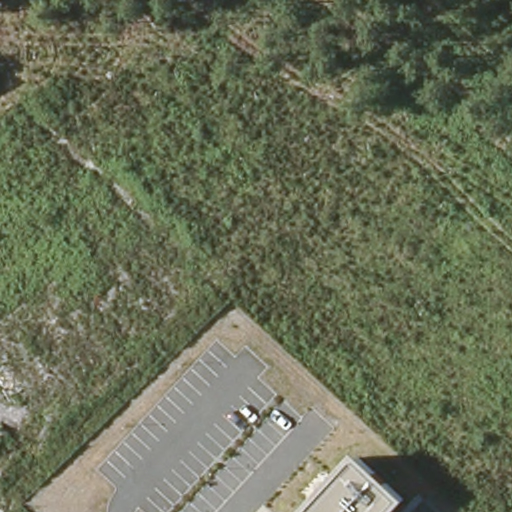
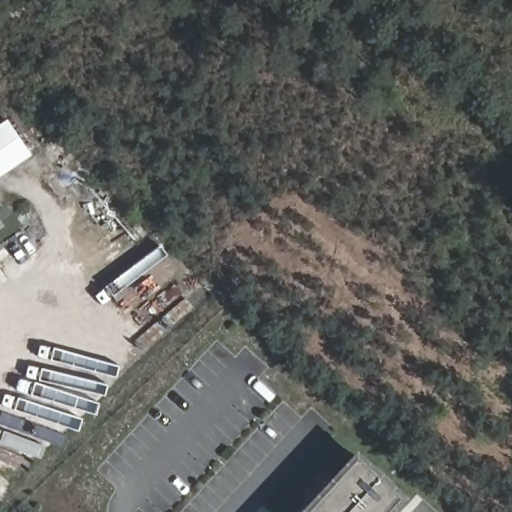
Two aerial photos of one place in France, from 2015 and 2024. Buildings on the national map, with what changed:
new [(32,153),(0,175),(0,126),(10,119),(32,153)]
unchanged [(399,512),(304,512),(359,453),(410,499),(399,512)]

